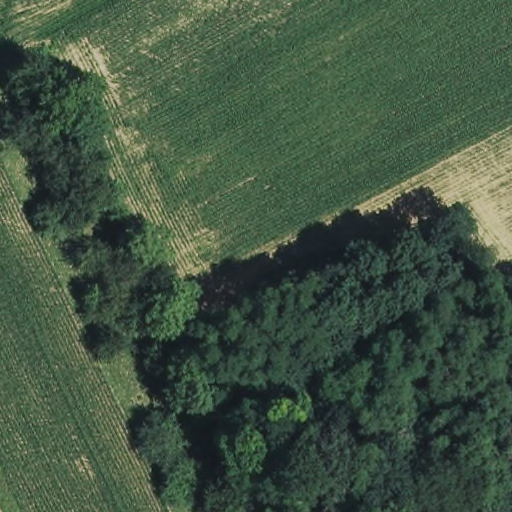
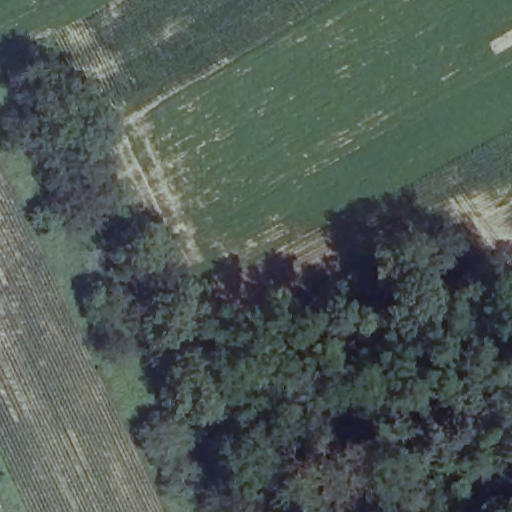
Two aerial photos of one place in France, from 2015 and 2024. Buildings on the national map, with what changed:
[]

